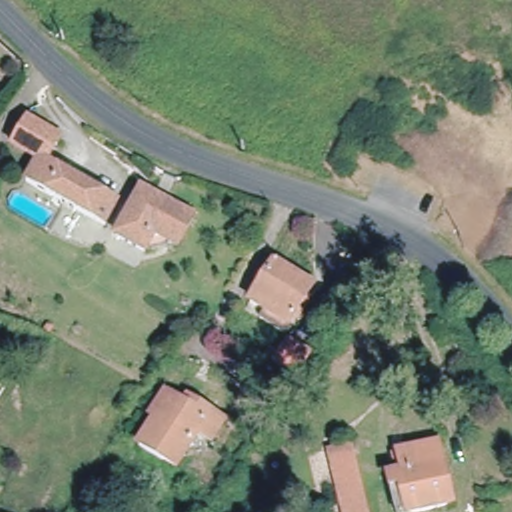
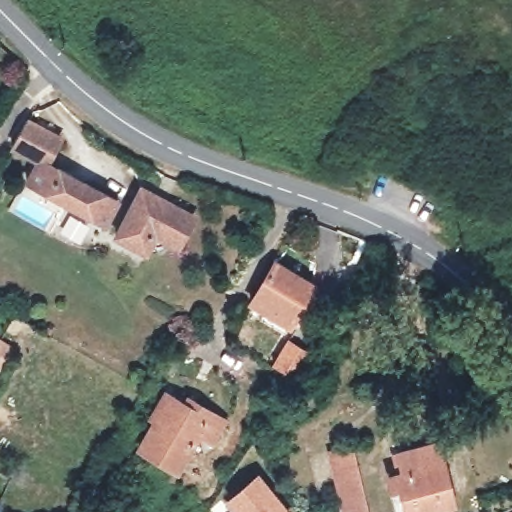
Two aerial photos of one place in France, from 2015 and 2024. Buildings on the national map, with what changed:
unchanged [(118,201),(106,226),(27,182),(39,160),(12,145),(28,120),(61,139),(47,162),(59,169),(118,201)]
unchanged [(177,237),(161,227),(152,230),(146,242),(116,226),(142,179),(194,207),(177,237)]
unchanged [(256,313),(260,306),(247,297),(271,258),(308,281),(285,321),(281,328),(256,313)]
unchanged [(292,373),(262,356),(268,345),(276,350),(283,336),(300,346),(305,350),(292,373)]
unchanged [(0,367),(0,341),(12,348),(1,367),(0,367)]
unchanged [(199,437),(176,475),(140,452),(157,424),(152,422),(167,399),(171,402),(184,410),(187,403),(196,408),(225,426),(212,446),(199,437)]
unchanged [(368,512),(346,512),(330,446),(351,441),(368,512)]
unchanged [(390,477),(400,475),(395,456),(437,446),(452,505),(423,512),(398,512),(393,491),(390,477)]
new [(230,500),(257,477),(286,512),(240,512),(230,500)]

